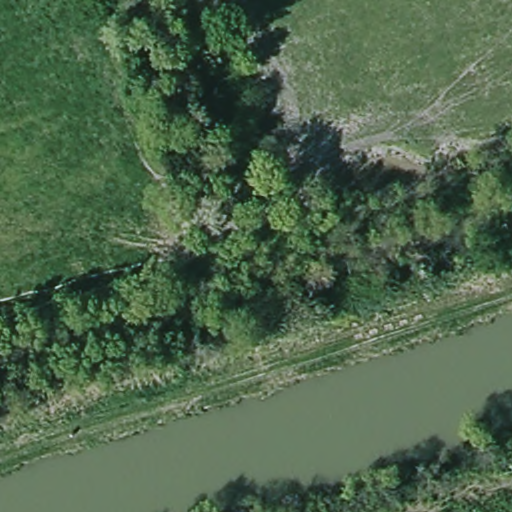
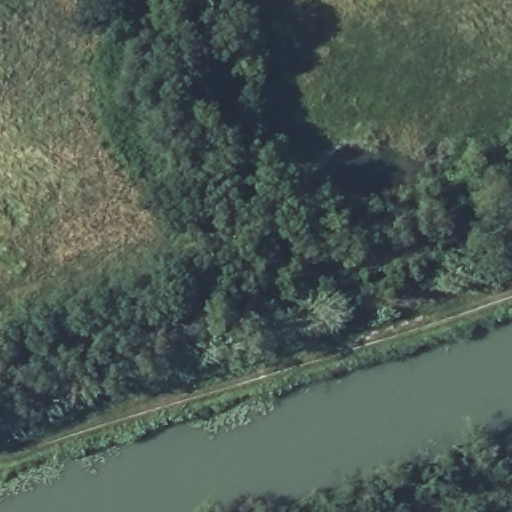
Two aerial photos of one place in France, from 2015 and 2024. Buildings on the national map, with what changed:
[]

